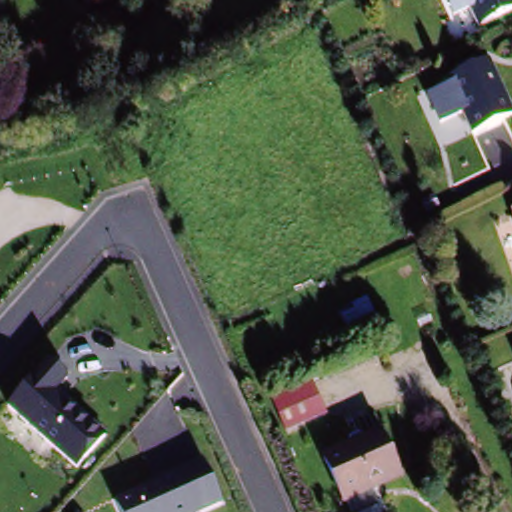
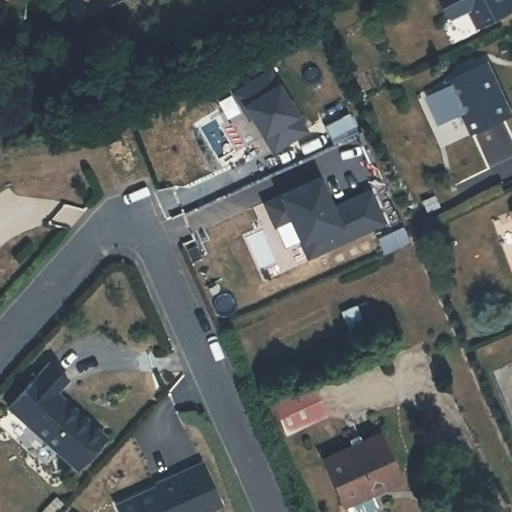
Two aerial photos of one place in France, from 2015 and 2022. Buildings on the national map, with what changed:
unchanged [(84,0),(95,0),(86,5),(84,0)]
unchanged [(470,4),(453,10),(450,0),(512,0),(512,11),(477,24),(470,4)]
unchanged [(452,80),(495,62),(512,108),(512,117),(472,133),(452,80)]
new [(276,81),(298,114),(307,130),(271,152),(260,137),(239,104),(238,107),(228,91),(267,66),(276,81)]
new [(333,205),(370,188),(385,222),(306,258),(299,244),(287,219),(273,226),(262,202),(277,195),(318,175),(333,205)]
unchanged [(512,213),(512,215),(511,213),(512,213)]
unchanged [(68,377),(56,392),(107,435),(76,470),(5,407),(47,358),(68,377)]
unchanged [(267,400),(308,385),(325,422),(285,438),(267,400)]
unchanged [(369,505),(353,512),(340,512),(318,460),(374,436),(391,475),(361,488),(369,505)]
unchanged [(219,503),(201,512),(118,512),(113,500),(201,460),(219,503)]

